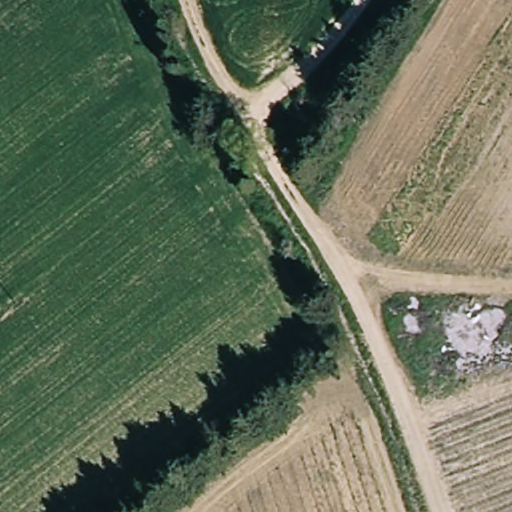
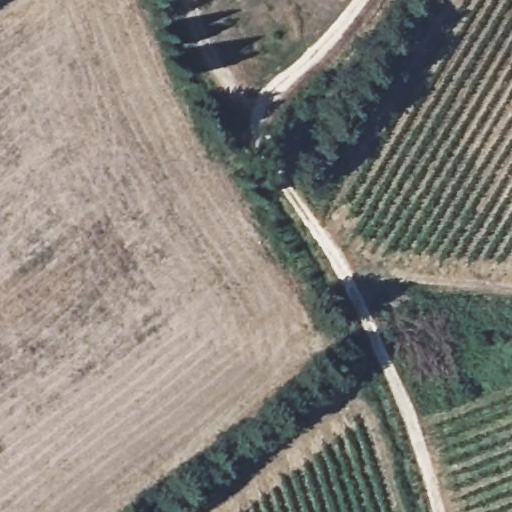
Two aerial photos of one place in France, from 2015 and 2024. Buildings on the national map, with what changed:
[]

